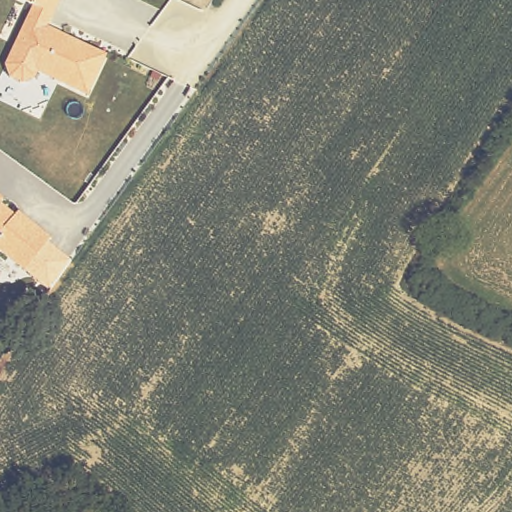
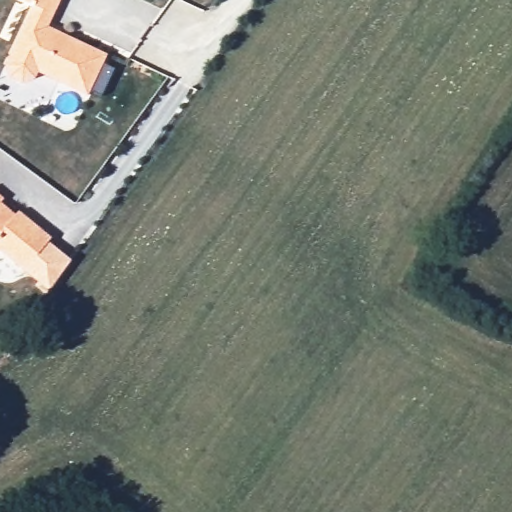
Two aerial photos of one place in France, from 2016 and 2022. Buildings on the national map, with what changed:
unchanged [(42,28),(100,57),(80,97),(31,73),(28,80),(15,84),(3,77),(0,68),(0,63),(2,59),(28,7),(15,0),(56,0),(42,28)]
unchanged [(21,210),(53,237),(25,269),(0,247),(0,192),(5,197),(1,200),(17,214),(21,210)]

